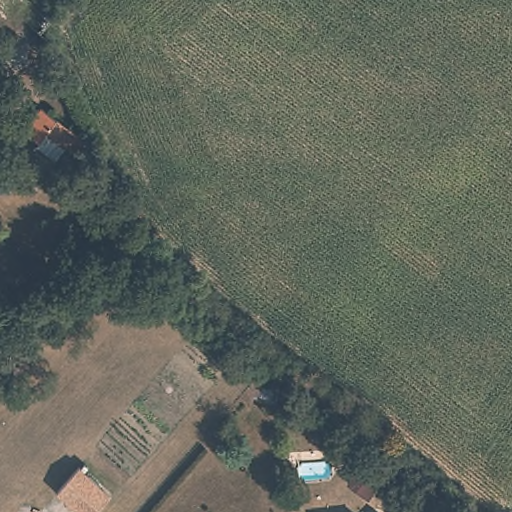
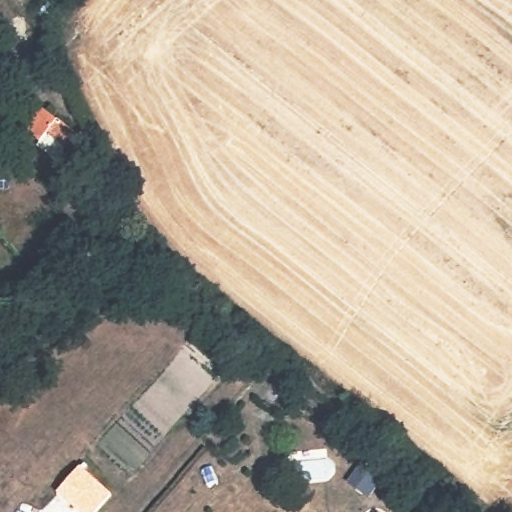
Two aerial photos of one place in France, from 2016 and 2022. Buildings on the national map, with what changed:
unchanged [(79,154),(65,144),(55,157),(36,145),(39,140),(23,129),(38,106),(76,132),(79,127),(91,136),(85,145),(103,157),(96,166),(79,154)]
unchanged [(114,495),(97,512),(85,512),(61,489),(84,465),(114,495)]
unchanged [(388,495),(376,510),(360,497),(373,482),(388,495)]

